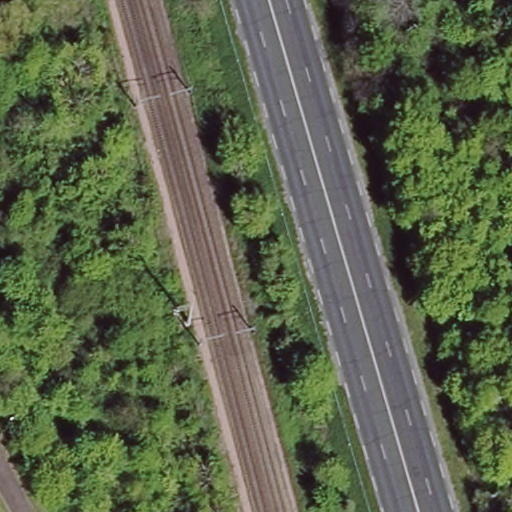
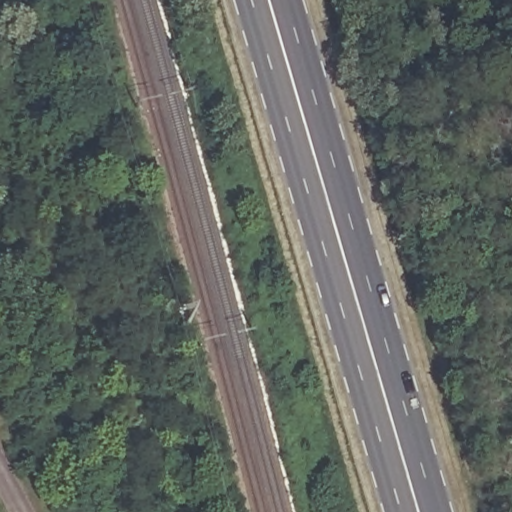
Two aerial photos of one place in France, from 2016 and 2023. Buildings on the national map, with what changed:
unchanged [(0,12),(0,0),(23,0),(0,12)]

